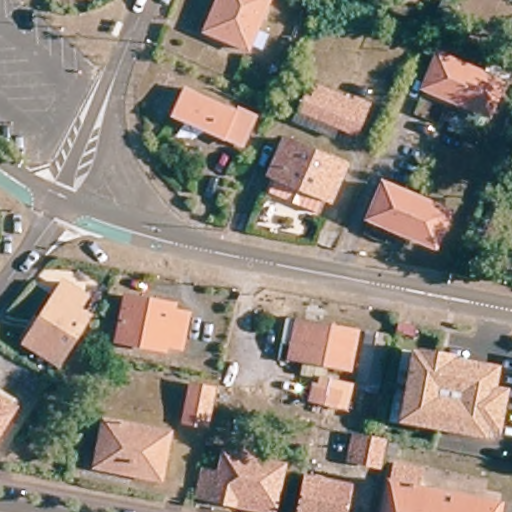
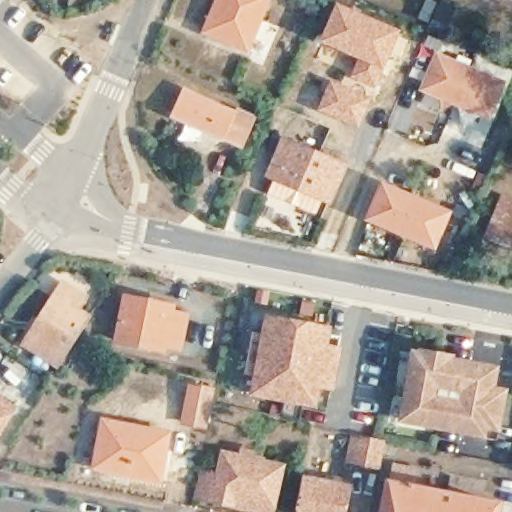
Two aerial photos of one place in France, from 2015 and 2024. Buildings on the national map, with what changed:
unchanged [(266,1),(242,59),(203,42),(196,40),(213,0),(264,0),(266,1)]
new [(335,2),(401,30),(375,90),(346,77),(356,59),(317,42),(335,2)]
unchanged [(502,85),(488,118),(423,91),(437,58),(502,85)]
unchanged [(292,125),(296,114),(308,85),(324,92),(339,99),(336,106),(348,112),(353,102),(367,108),(355,139),(337,131),(332,143),(292,125)]
unchanged [(234,114),(235,112),(253,120),(242,148),(223,140),(224,138),(171,114),(181,91),(234,114)]
unchanged [(261,193),(269,176),(262,173),(277,137),(337,163),(322,199),(318,198),(310,214),(261,193)]
unchanged [(383,187),(447,215),(433,248),(368,220),(383,187)]
unchanged [(502,198),(512,202),(512,250),(485,239),(502,198)]
unchanged [(18,352),(24,341),(48,304),(50,305),(58,292),(80,306),(71,319),(84,327),(60,364),(53,374),(18,352)]
unchanged [(172,307),(171,313),(187,316),(180,352),(164,349),(163,354),(115,344),(125,298),(172,307)]
new [(263,314),(330,326),(328,344),(341,347),(333,391),(320,389),(316,408),(248,394),(263,314)]
demolished [(285,321),(355,334),(348,372),(288,360),(291,347),(281,345),(285,321)]
unchanged [(409,351),(464,361),(456,398),(463,399),(457,429),(396,417),(409,351)]
unchanged [(463,399),(456,398),(464,361),(502,369),(489,435),(457,429),(463,399)]
unchanged [(212,392),(204,430),(181,425),(189,387),(212,392)]
unchanged [(2,424),(0,422),(0,405),(10,411),(2,424)]
unchanged [(0,427),(0,422),(2,424),(0,427)]
unchanged [(158,483),(95,470),(103,424),(168,436),(158,483)]
unchanged [(344,462),(350,437),(381,443),(376,469),(344,462)]
unchanged [(196,477),(211,480),(216,459),(233,462),(235,456),(256,461),(254,467),(277,472),(269,511),(269,512),(229,512),(190,504),(196,477)]
unchanged [(421,470),(418,487),(497,502),(495,512),(383,512),(392,464),(421,470)]
unchanged [(330,484),(331,478),(349,482),(343,512),(295,512),(302,479),(330,484)]

